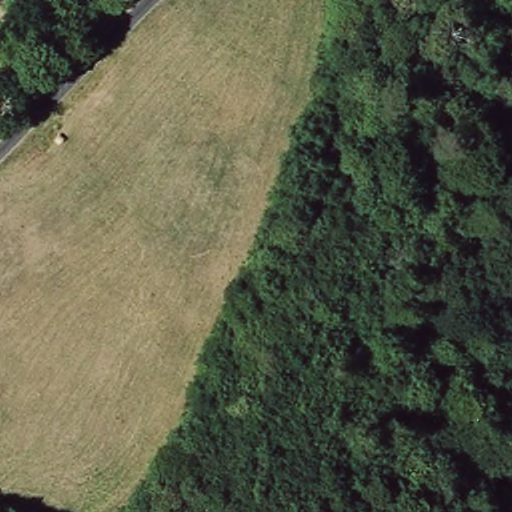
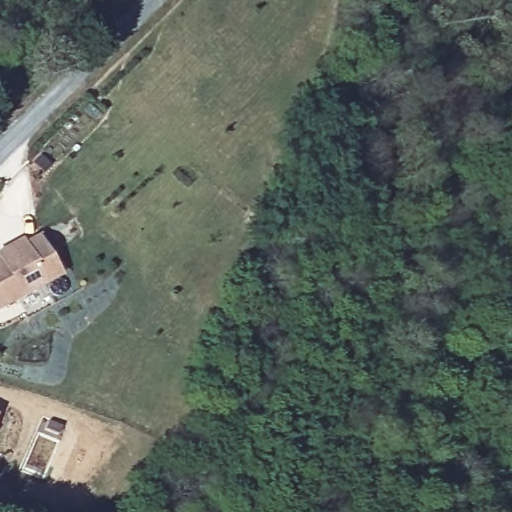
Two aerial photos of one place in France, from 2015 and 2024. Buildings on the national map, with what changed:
new [(22,237),(24,242),(38,235),(59,276),(0,306),(0,248),(22,237)]

